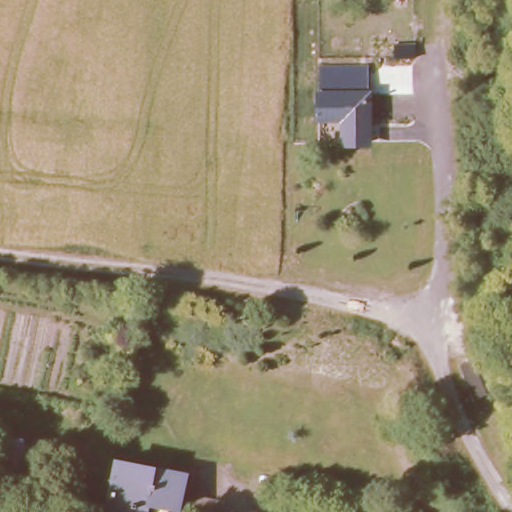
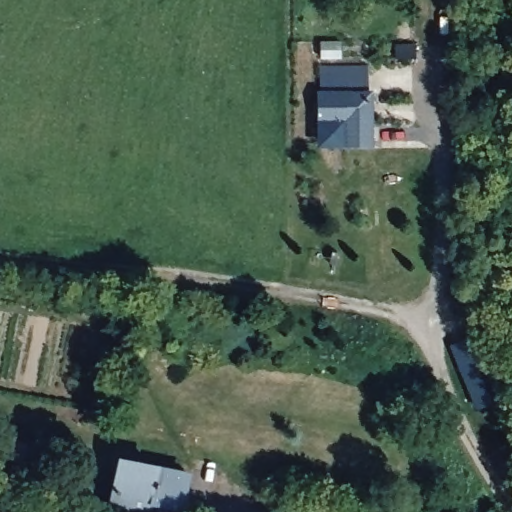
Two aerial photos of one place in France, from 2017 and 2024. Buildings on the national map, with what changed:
unchanged [(371,92),(319,94),(320,64),(369,65),(371,92)]
unchanged [(338,123),(311,124),(312,94),(371,92),(376,145),(339,149),(338,123)]
unchanged [(36,440),(24,492),(0,488),(0,433),(36,440)]
unchanged [(110,457),(176,471),(170,503),(168,512),(135,512),(101,505),(110,457)]

